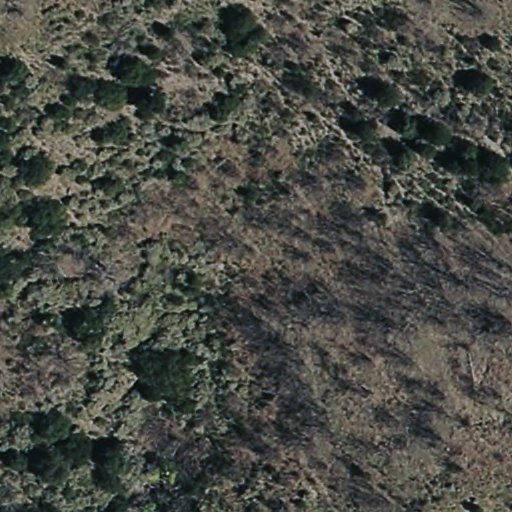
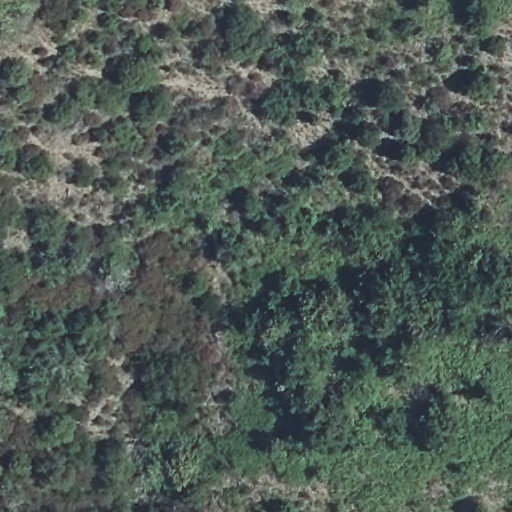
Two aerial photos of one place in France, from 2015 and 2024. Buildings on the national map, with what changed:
[]

